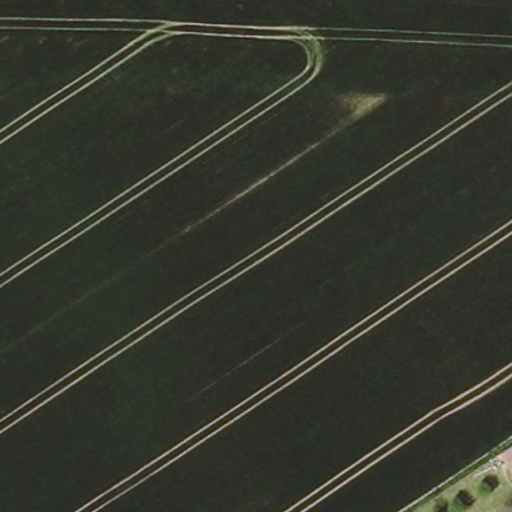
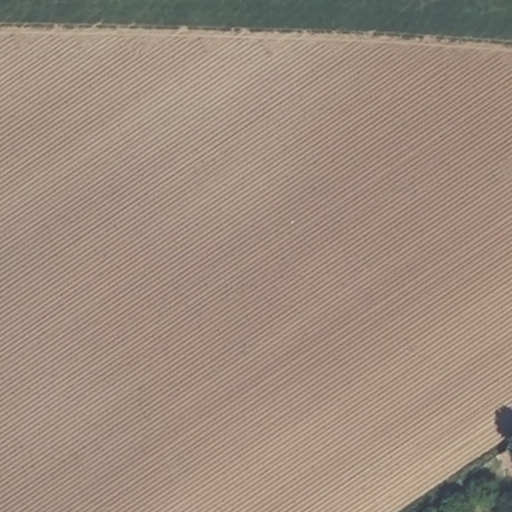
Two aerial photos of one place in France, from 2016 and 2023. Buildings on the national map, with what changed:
unchanged [(512,437),(512,462),(503,468),(490,451),(508,432),(512,437)]

